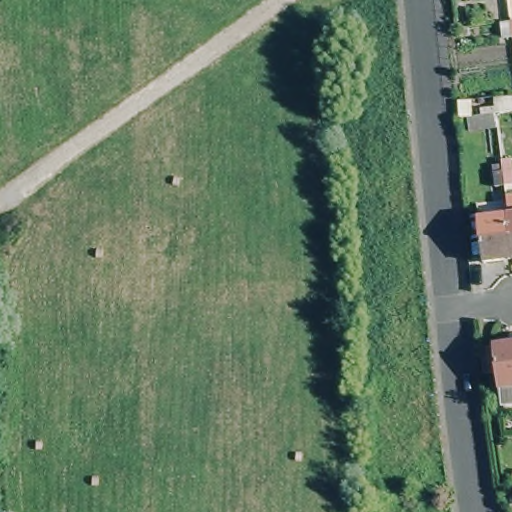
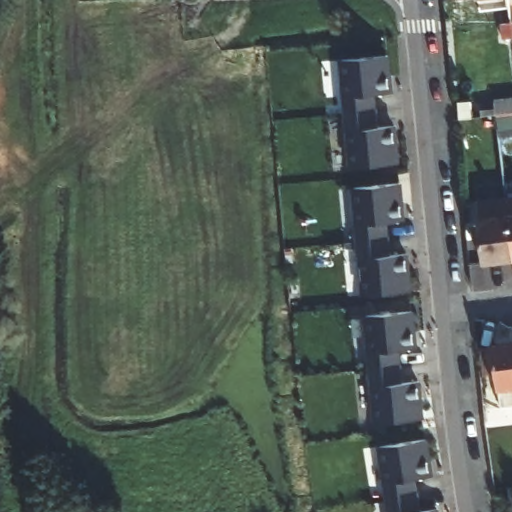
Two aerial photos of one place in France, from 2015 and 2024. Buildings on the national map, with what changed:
new [(390,93),(374,93),(377,118),(394,117),(397,160),(354,162),(342,59),(385,55),(390,93)]
unchanged [(492,115),(490,102),(512,99),(512,111),(492,115)]
new [(402,225),(387,225),(390,250),(406,249),(410,292),(366,295),(355,190),(397,186),(402,225)]
unchanged [(484,262),(479,216),(509,212),(510,222),(512,240),(512,258),(484,262)]
unchanged [(512,212),(512,240),(510,222),(509,212),(512,212)]
new [(413,350),(397,350),(400,375),(417,373),(421,416),(377,419),(365,315),(409,311),(413,350)]
unchanged [(485,393),(480,345),(509,340),(512,367),(512,390),(485,393)]
unchanged [(509,340),(512,340),(512,367),(509,340)]
new [(429,482),(413,482),(416,507),(432,506),(433,512),(388,512),(381,448),(424,444),(429,482)]

